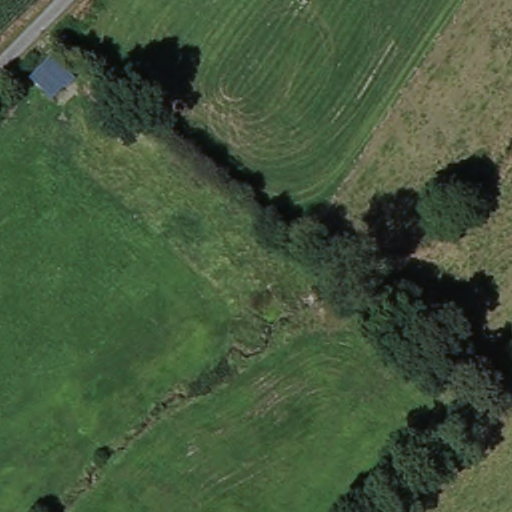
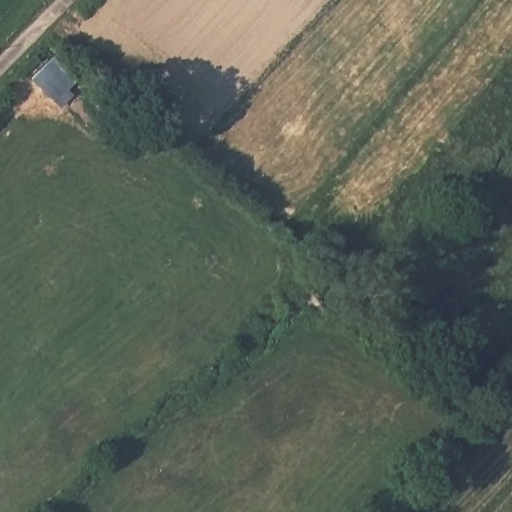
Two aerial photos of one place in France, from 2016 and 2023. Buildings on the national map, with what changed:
unchanged [(31,75),(52,59),(71,84),(54,101),(31,75)]

